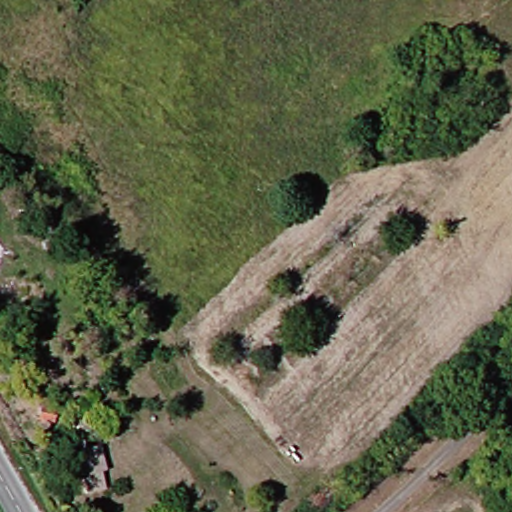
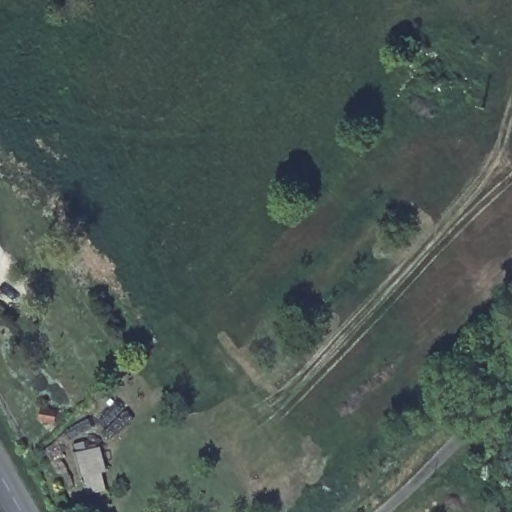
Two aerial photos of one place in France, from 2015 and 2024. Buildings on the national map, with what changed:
unchanged [(447,89),(432,100),(417,84),(433,73),(447,89)]

